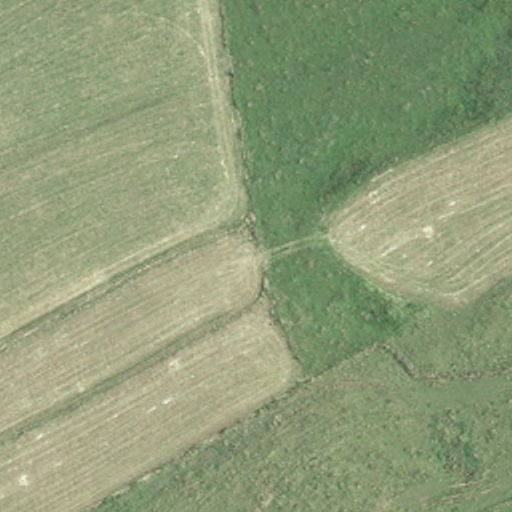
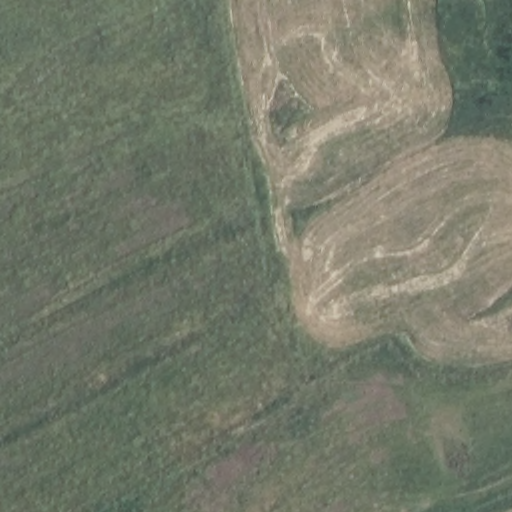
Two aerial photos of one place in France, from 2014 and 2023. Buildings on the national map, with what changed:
[]

